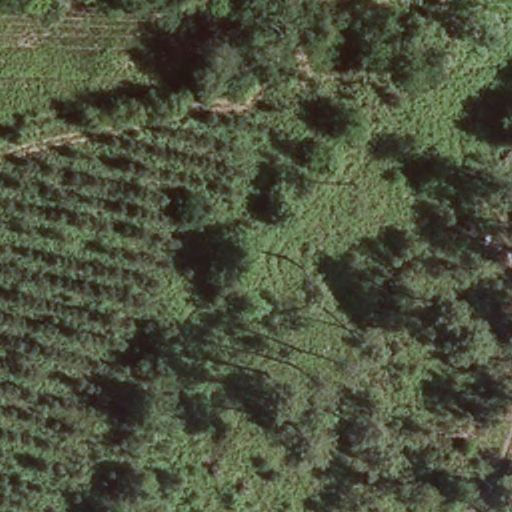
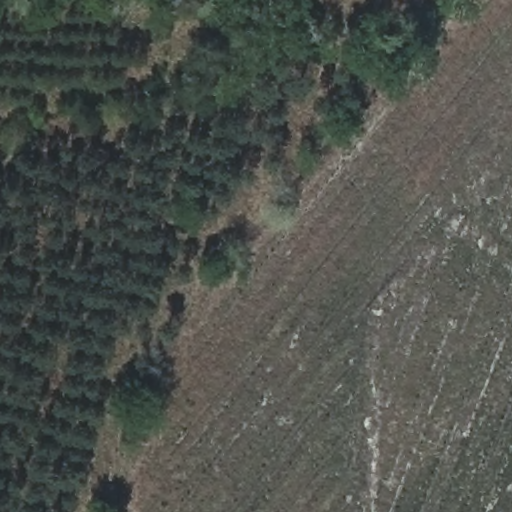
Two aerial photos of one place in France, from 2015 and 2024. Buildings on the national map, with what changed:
[]

